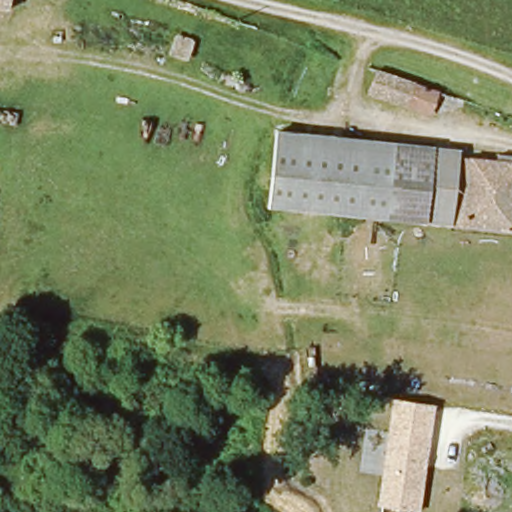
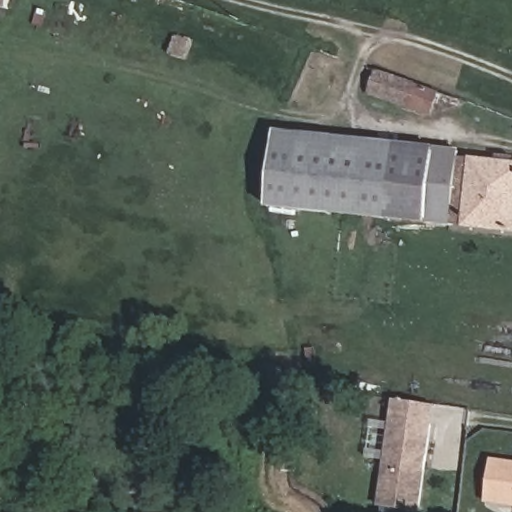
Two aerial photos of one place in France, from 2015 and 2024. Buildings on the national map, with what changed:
unchanged [(0,5),(0,0),(12,0),(11,6),(0,5)]
unchanged [(170,52),(175,38),(191,43),(186,57),(170,52)]
unchanged [(434,91),(431,114),(408,108),(410,97),(373,83),(373,69),(434,91)]
unchanged [(464,151),(462,156),(455,225),(266,208),(274,133),(464,151)]
unchanged [(460,222),(467,155),(512,160),(512,229),(460,222)]
unchanged [(438,407),(423,512),(405,512),(376,508),(393,400),(438,407)]
new [(484,504),(491,458),(512,461),(512,508),(484,504)]

